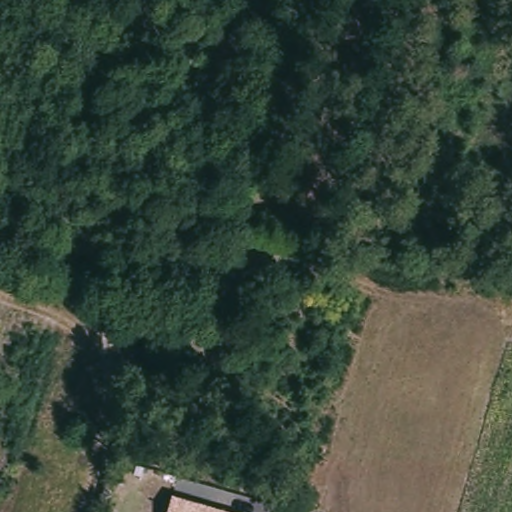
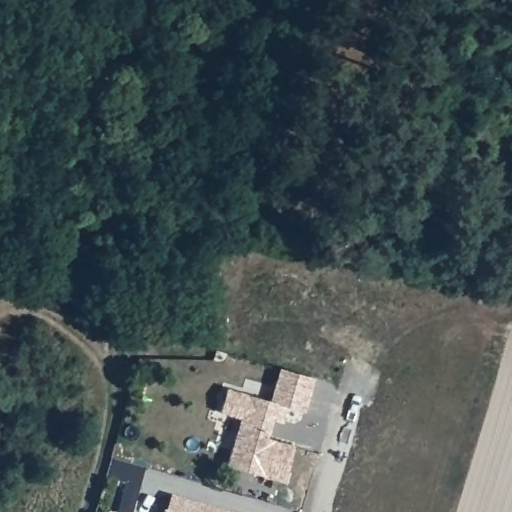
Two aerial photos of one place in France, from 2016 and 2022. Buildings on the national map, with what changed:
new [(240,417),(221,411),(227,388),(269,401),(280,368),(314,378),(305,411),(285,408),(281,419),(273,417),(268,437),(294,445),(284,481),(227,465),(240,417)]
unchanged [(224,512),(167,512),(172,497),(224,512)]

